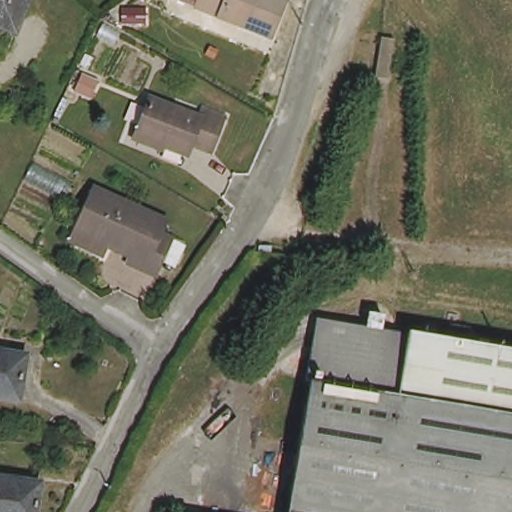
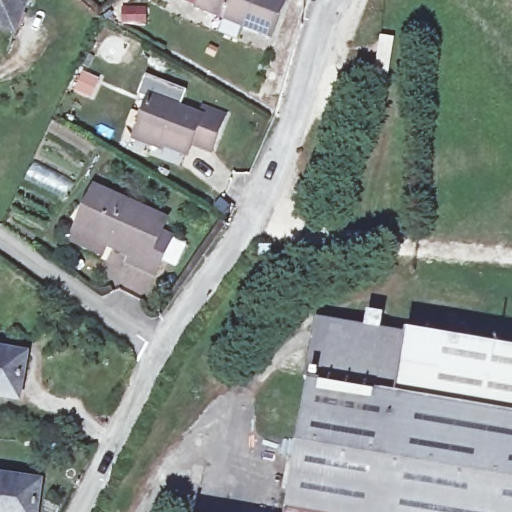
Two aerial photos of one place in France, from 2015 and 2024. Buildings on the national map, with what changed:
unchanged [(18,27),(0,21),(0,0),(29,0),(18,27)]
unchanged [(270,37),(197,4),(198,0),(284,0),(270,37)]
unchanged [(395,31),(388,71),(376,68),(384,29),(395,31)]
unchanged [(199,116),(202,107),(223,115),(210,146),(192,140),(187,152),(135,132),(149,97),(199,116)]
unchanged [(160,218),(155,228),(168,234),(150,270),(126,260),(129,252),(73,227),(90,187),(160,218)]
unchanged [(305,378),(300,377),(311,314),(362,322),(364,308),(379,311),(377,324),(512,347),(512,512),(283,512),(300,409),(305,378)]
unchanged [(465,323),(463,334),(444,331),(445,319),(465,323)]
unchanged [(21,396),(0,393),(0,344),(30,349),(21,396)]
unchanged [(0,512),(0,474),(40,479),(35,512),(0,512)]

